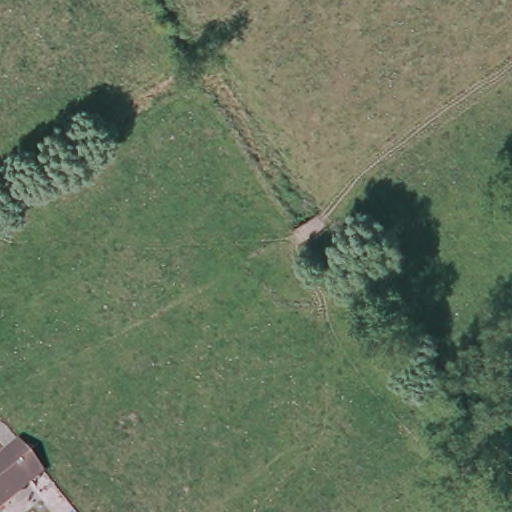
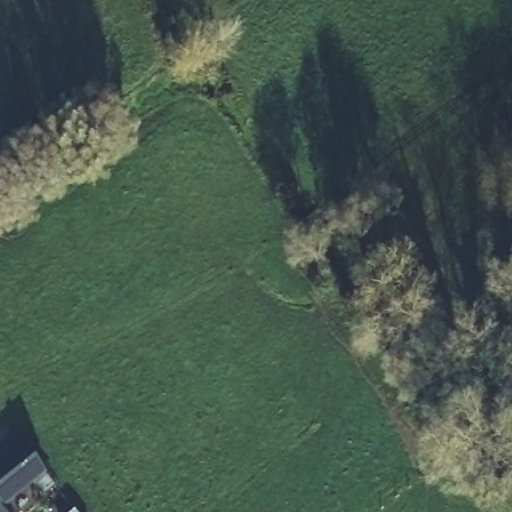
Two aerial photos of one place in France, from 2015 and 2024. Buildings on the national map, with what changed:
unchanged [(0,508),(0,458),(19,442),(44,473),(0,508)]

